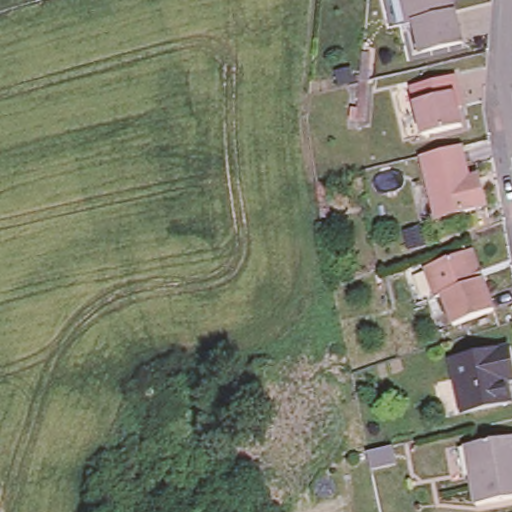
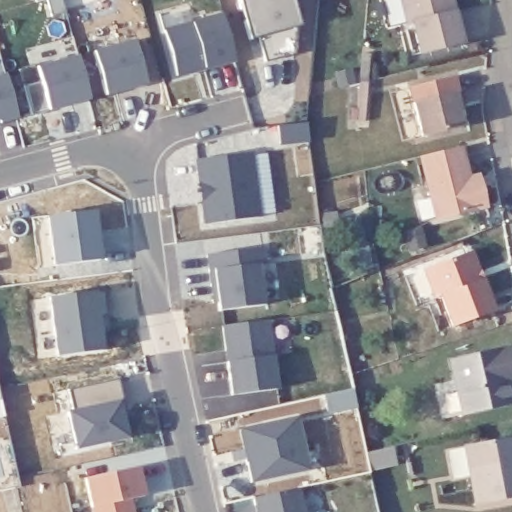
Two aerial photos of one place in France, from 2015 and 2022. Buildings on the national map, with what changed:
new [(241,0),(293,0),(301,28),(300,28),(297,58),(268,66),(261,38),(252,40),(254,44),(252,44),(241,0)]
unchanged [(411,25),(404,27),(397,0),(447,0),(450,15),(457,45),(419,55),(411,25)]
new [(235,61),(205,69),(176,77),(163,26),(189,19),(222,11),(235,61)]
new [(147,85),(105,96),(92,50),(134,39),(147,85)]
new [(90,100),(49,111),(36,66),(77,54),(90,100)]
unchanged [(366,56),(364,83),(361,122),(355,123),(356,102),(357,85),(360,55),(366,56)]
new [(2,125),(1,121),(0,121),(0,75),(6,74),(17,120),(2,125)]
unchanged [(420,139),(407,90),(453,79),(457,96),(461,111),(454,113),(459,129),(420,139)]
unchanged [(427,206),(417,160),(457,151),(465,183),(474,181),(477,194),(481,213),(438,222),(432,224),(427,206)]
new [(201,163),(255,156),(263,221),(209,228),(206,205),(203,185),(201,163)]
new [(97,211),(104,257),(57,264),(52,217),(97,211)]
new [(267,263),(260,263),(265,305),(218,311),(213,270),(210,252),(263,247),(267,263)]
unchanged [(447,330),(439,299),(431,301),(422,272),(467,259),(476,256),(484,285),(493,317),(447,330)]
new [(62,360),(55,301),(109,294),(112,320),(114,333),(107,334),(111,354),(62,360)]
new [(274,353),(278,389),(231,395),(227,360),(222,324),(269,318),(274,353)]
unchanged [(467,419),(452,366),(508,354),(512,370),(512,388),(508,389),(512,407),(467,419)]
new [(129,421),(124,418),(129,438),(75,449),(67,410),(73,409),(68,387),(119,376),(129,421)]
new [(307,469),(251,482),(240,429),(296,417),(307,469)]
unchanged [(476,509),(465,452),(507,444),(512,443),(512,502),(476,509)]
new [(147,496),(132,499),(135,512),(91,512),(91,508),(85,478),(139,465),(147,496)]
new [(305,512),(255,512),(252,497),(299,486),(305,512)]

